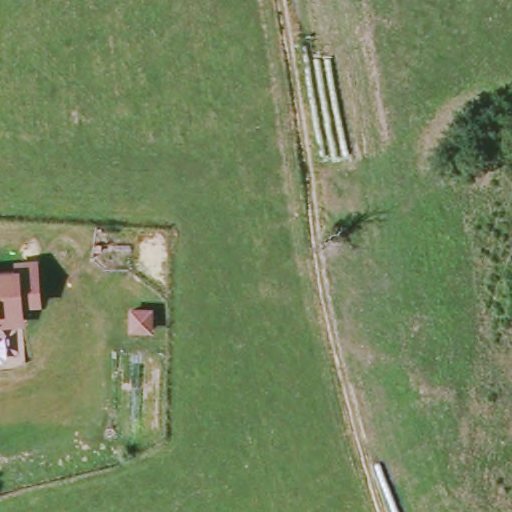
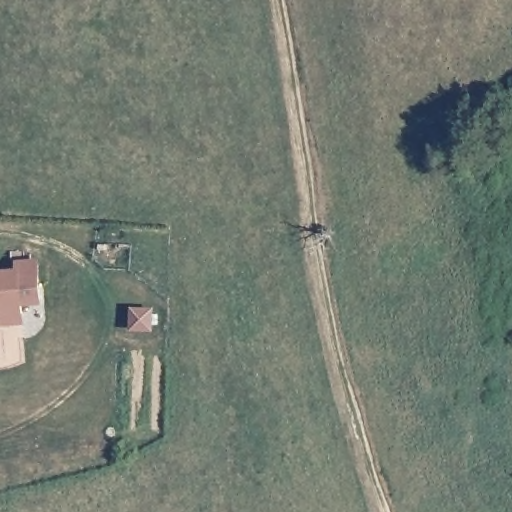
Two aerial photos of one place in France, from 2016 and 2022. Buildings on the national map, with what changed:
unchanged [(34,267),(34,274),(36,306),(18,307),(20,326),(0,327),(0,276),(14,275),(14,268),(34,267)]

